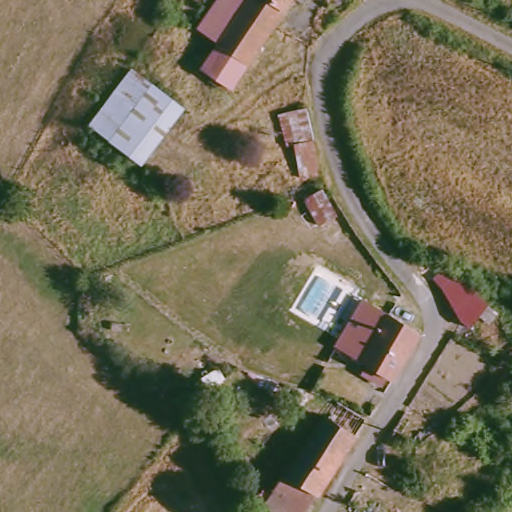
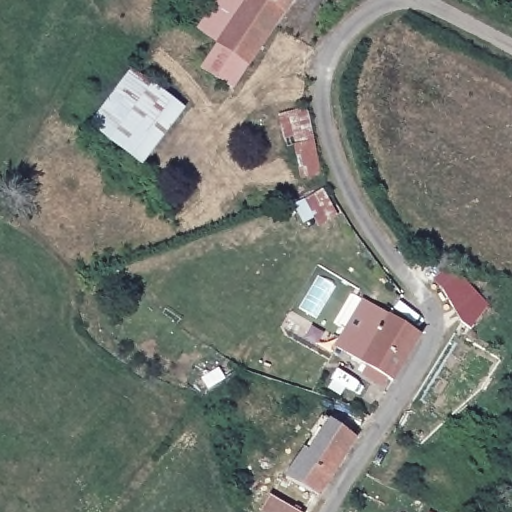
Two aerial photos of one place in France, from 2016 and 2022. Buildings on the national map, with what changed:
unchanged [(207,69),(220,48),(200,34),(222,0),(293,0),(234,89),(207,69)]
unchanged [(134,68),(189,110),(145,166),(94,125),(134,68)]
unchanged [(306,177),(299,146),(292,148),(282,115),(312,109),(319,139),(314,142),(322,176),(306,177)]
unchanged [(460,278),(465,285),(472,279),(493,308),(503,315),(495,325),(487,317),(483,323),(475,316),(462,322),(445,289),(460,278)]
unchanged [(393,380),(337,348),(348,329),(359,334),(375,307),(421,333),(393,380)]
unchanged [(376,419),(321,504),(316,502),(287,484),(344,404),(376,419)]
unchanged [(309,512),(268,512),(271,509),(263,501),(277,478),(287,484),(316,502),(309,512)]

